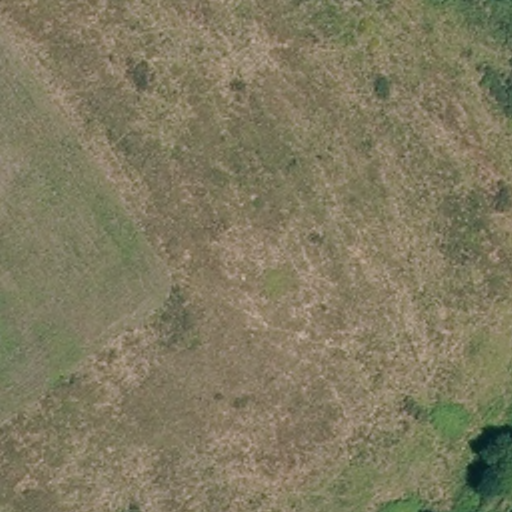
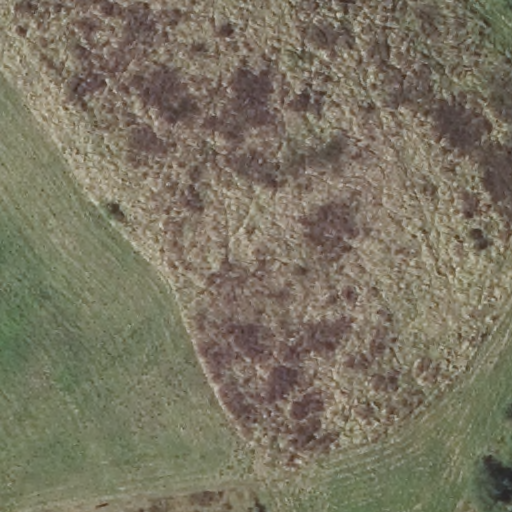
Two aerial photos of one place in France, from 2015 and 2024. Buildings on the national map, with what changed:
[]

